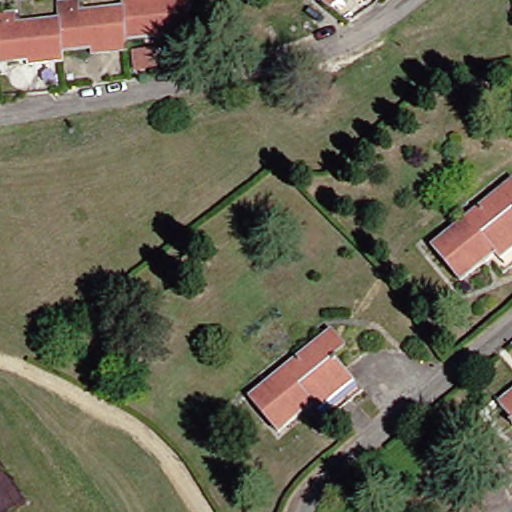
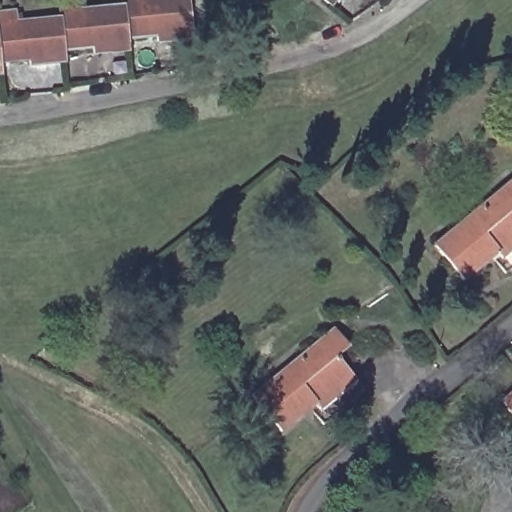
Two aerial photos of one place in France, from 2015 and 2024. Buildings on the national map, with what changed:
unchanged [(90,52),(90,47),(59,50),(56,18),(55,0),(77,0),(77,9),(86,8),(121,5),(125,38),(125,44),(126,49),(90,52)]
unchanged [(151,41),(150,36),(125,38),(121,5),(121,0),(137,0),(137,4),(148,3),(148,0),(183,0),(186,32),(187,38),(151,41)]
unchanged [(325,6),(317,0),(329,0),(325,6)]
unchanged [(24,60),(0,62),(0,11),(11,10),(12,22),(20,21),(56,18),(59,50),(60,57),(60,62),(25,65),(24,60)]
unchanged [(501,272),(487,255),(458,279),(428,244),(512,175),(512,263),(501,272)]
unchanged [(344,348),(332,358),(360,394),(319,427),(305,411),(275,436),(246,400),(330,331),(344,348)]
unchanged [(491,401),(512,384),(512,426),(491,401)]

